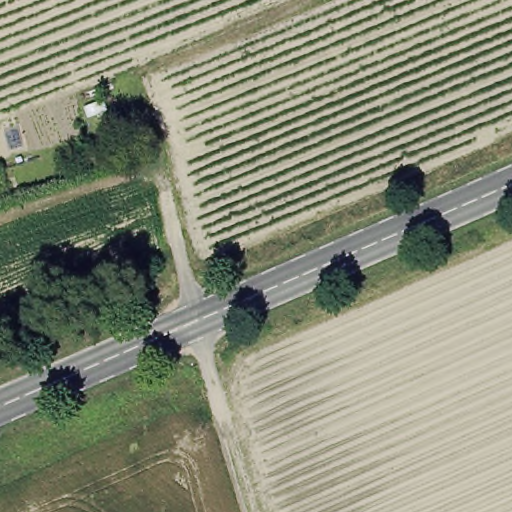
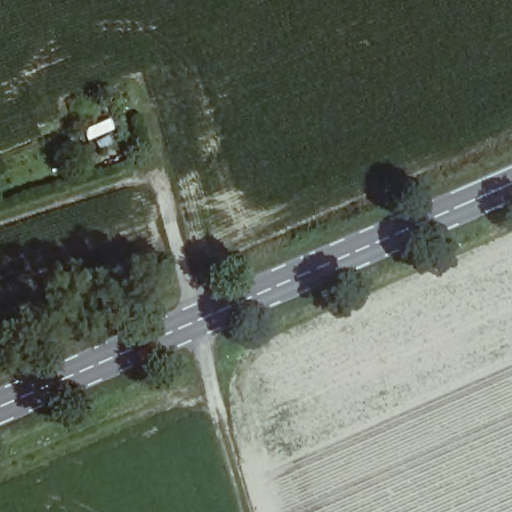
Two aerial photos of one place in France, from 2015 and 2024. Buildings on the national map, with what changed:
unchanged [(95,138),(112,131),(120,151),(103,160),(95,138)]

